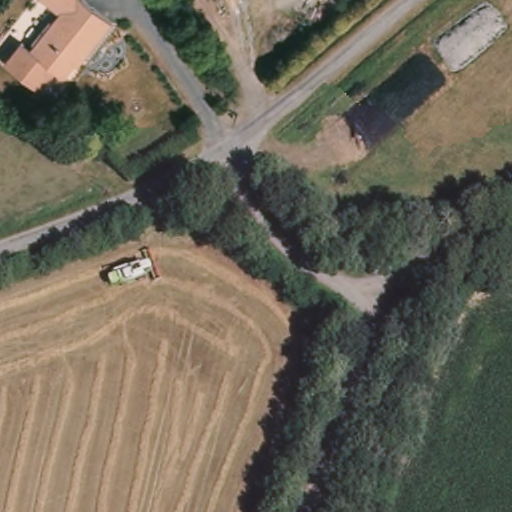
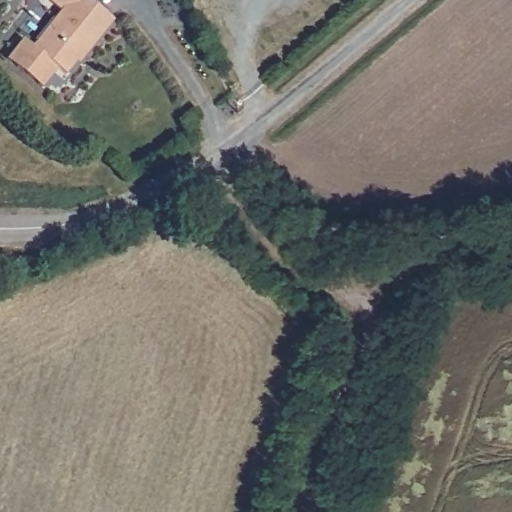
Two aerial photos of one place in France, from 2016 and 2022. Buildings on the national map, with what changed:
unchanged [(44,85),(14,61),(30,40),(39,48),(70,13),(53,0),(90,0),(118,24),(93,56),(89,53),(71,75),(63,69),(47,88),(44,85)]

